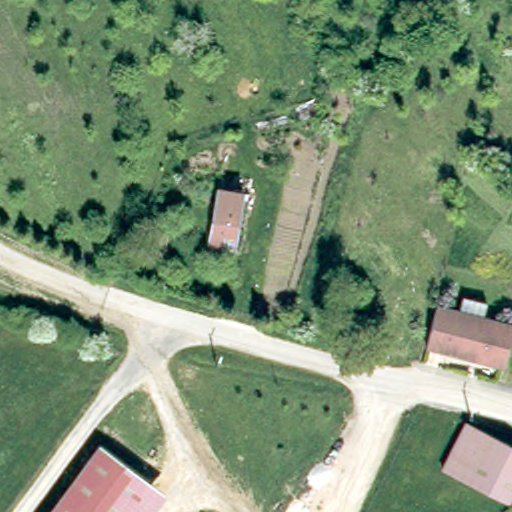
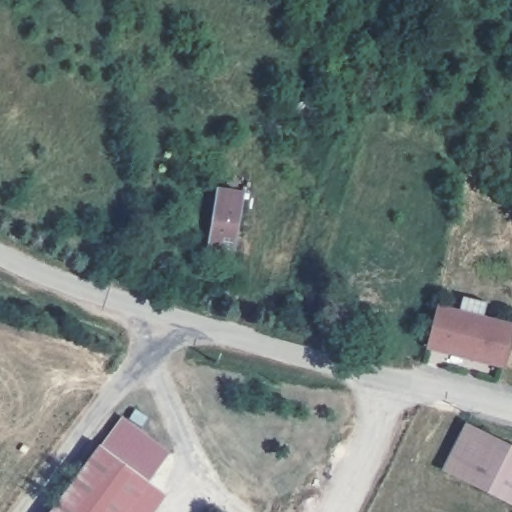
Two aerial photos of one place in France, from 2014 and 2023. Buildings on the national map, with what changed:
unchanged [(210,245),(218,189),(244,194),(236,250),(210,245)]
unchanged [(430,312),(452,318),(456,302),(482,309),(478,324),(506,332),(496,370),(421,350),(430,312)]
new [(106,441),(121,417),(169,451),(155,478),(106,441)]
unchanged [(466,424),(512,448),(512,505),(442,469),(466,424)]
unchanged [(155,478),(130,512),(53,512),(106,441),(155,478)]
unchanged [(155,512),(130,512),(155,478),(171,490),(155,512)]

